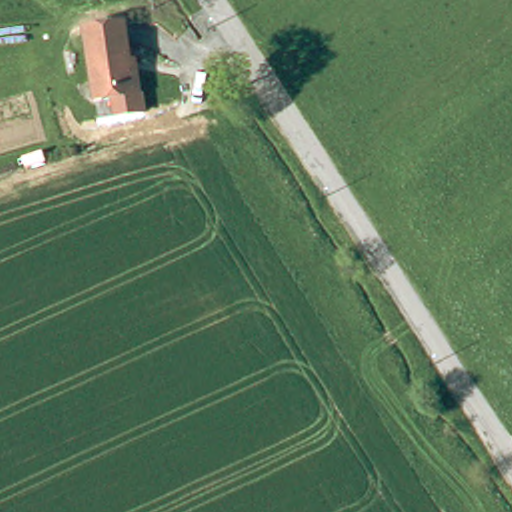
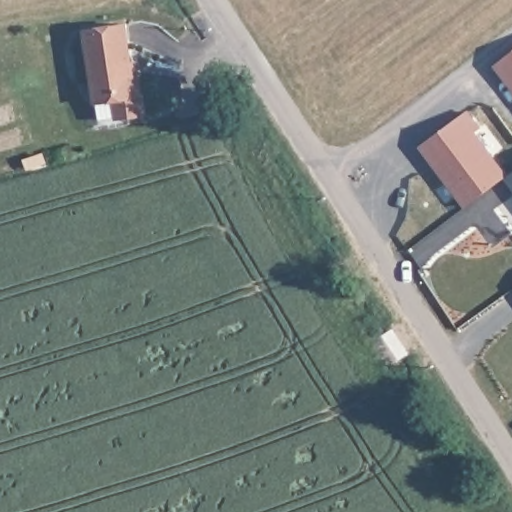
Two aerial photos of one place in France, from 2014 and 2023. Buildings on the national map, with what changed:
unchanged [(125,30),(134,101),(94,106),(84,35),(125,30)]
new [(512,50),(512,86),(494,63),(512,50)]
new [(466,202),(423,144),(467,112),(479,127),(473,131),(504,174),(466,202)]
new [(512,187),(504,177),(512,172),(512,187)]

